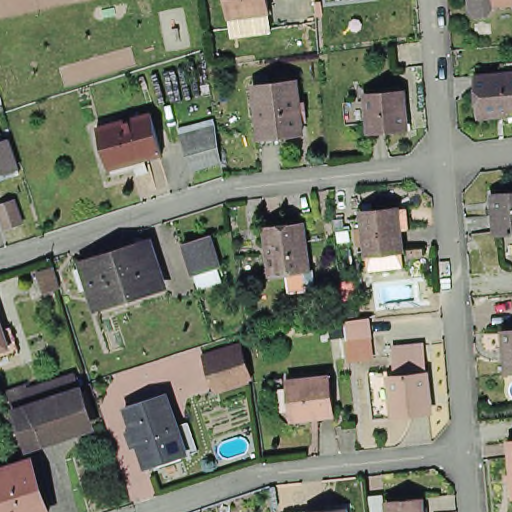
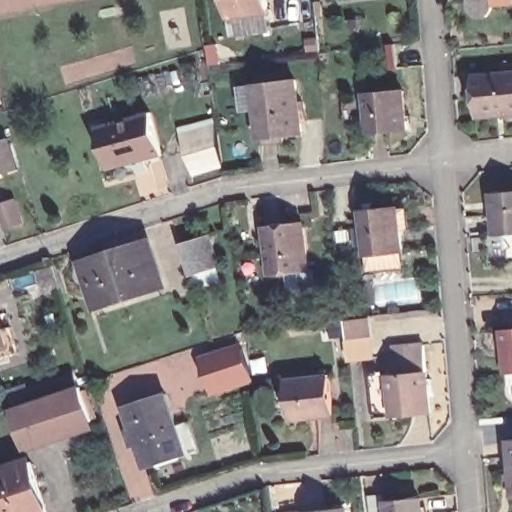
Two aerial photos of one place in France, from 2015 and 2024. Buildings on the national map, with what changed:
unchanged [(271,0),(272,17),(229,19),(229,0),(271,0)]
unchanged [(492,5),(487,12),(478,14),(472,7),(471,0),(500,0),(492,0),(492,5)]
unchanged [(480,70),(512,68),(512,111),(483,113),(480,70)]
unchanged [(255,81),(296,77),(302,131),(260,135),(255,81)]
unchanged [(406,125),(369,128),(366,89),(402,86),(406,125)]
unchanged [(160,109),(172,151),(119,165),(108,123),(160,109)]
unchanged [(184,146),(182,130),(215,126),(216,141),(219,155),(186,160),(184,146)]
unchanged [(17,166),(0,172),(0,141),(8,139),(17,166)]
unchanged [(492,190),(512,188),(512,229),(496,230),(492,190)]
unchanged [(363,211),(399,208),(410,207),(412,226),(401,228),(402,246),(367,249),(363,211)]
unchanged [(26,231),(10,237),(3,214),(19,209),(26,231)]
unchanged [(310,267),(281,269),(271,270),(270,260),(267,223),(304,219),(310,267)]
unchanged [(192,259),(187,243),(212,234),(217,252),(222,268),(197,275),(192,259)]
unchanged [(153,243),(166,285),(102,305),(88,264),(153,243)]
unchanged [(59,286),(42,292),(35,271),(52,265),(59,286)]
unchanged [(349,341),(347,320),(368,319),(370,339),(349,341)]
unchanged [(502,322),(512,321),(512,365),(507,365),(502,322)]
unchanged [(10,322),(17,346),(0,352),(0,325),(10,322)]
unchanged [(217,394),(208,366),(206,359),(245,348),(246,354),(255,384),(217,394)]
unchanged [(390,391),(394,391),(391,364),(424,361),(427,388),(430,430),(394,434),(390,391)]
unchanged [(35,407),(50,402),(46,389),(75,379),(80,392),(92,425),(64,434),(45,440),(25,447),(14,413),(35,407)]
unchanged [(296,419),(292,382),(335,379),(337,416),(296,419)]
unchanged [(185,456),(145,469),(125,407),(164,394),(175,428),(186,424),(195,452),(185,456)]
unchanged [(512,438),(512,495),(509,438),(512,438)]
unchanged [(35,457),(40,469),(54,508),(40,512),(7,512),(0,491),(0,468),(35,457)]
unchanged [(380,497),(395,495),(396,512),(381,512),(380,497)]
unchanged [(399,502),(433,499),(434,512),(399,512),(399,502)]
unchanged [(303,507),(340,504),(340,512),(303,512),(303,507)]

